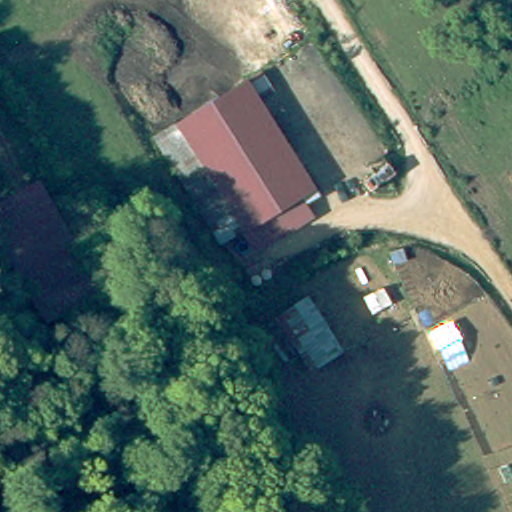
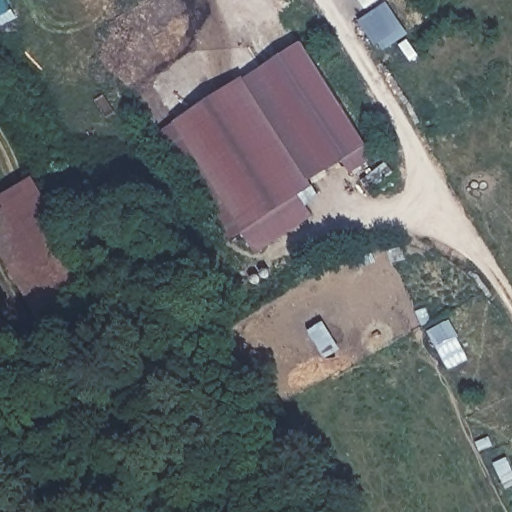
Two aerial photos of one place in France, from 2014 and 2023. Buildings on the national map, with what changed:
new [(0,13),(0,0),(9,0),(12,7),(0,13)]
new [(409,34),(390,47),(385,37),(376,43),(360,20),(389,2),(409,34)]
new [(368,142),(377,156),(352,173),(343,160),(313,180),(247,76),(305,41),(368,142)]
unchanged [(247,76),(317,185),(299,196),(312,217),(256,252),(242,231),(225,242),(156,133),(247,76)]
unchanged [(0,196),(34,176),(95,278),(101,288),(47,320),(44,315),(0,242),(0,196)]
unchanged [(305,292),(341,349),(310,368),(275,315),(305,292)]

